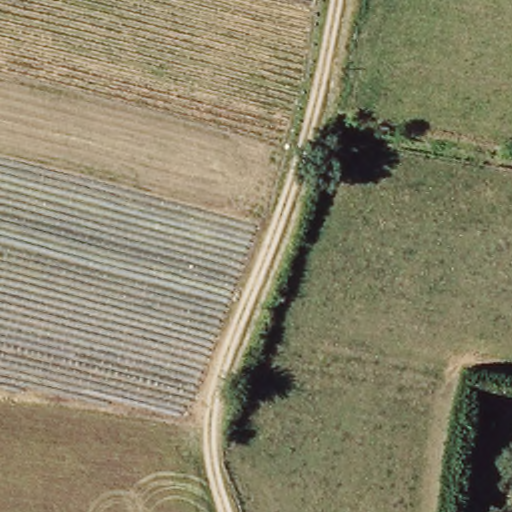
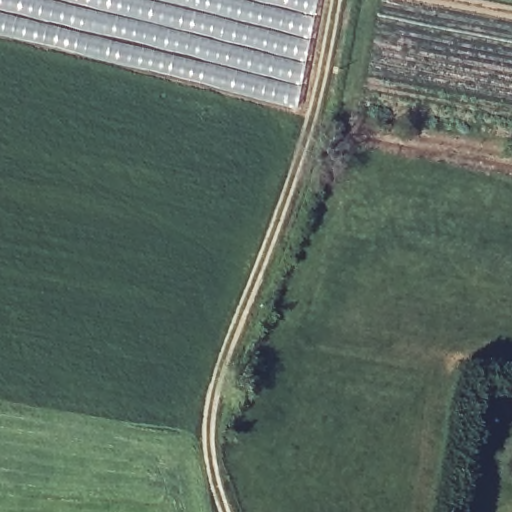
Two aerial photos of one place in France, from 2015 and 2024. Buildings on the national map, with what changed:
new [(295,109),(155,72),(7,37),(0,35),(0,0),(253,0),(315,16),(295,109)]
new [(253,0),(317,0),(315,16),(253,0)]

